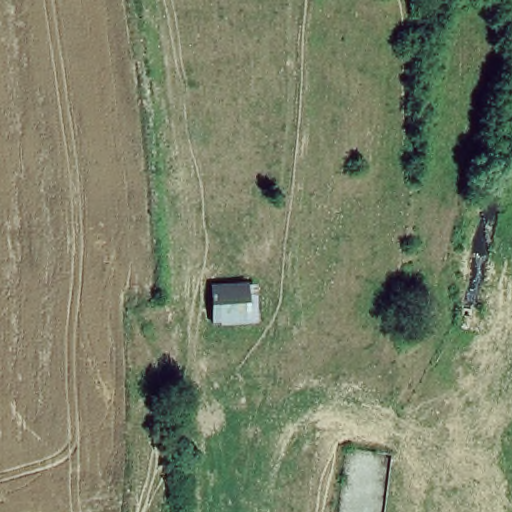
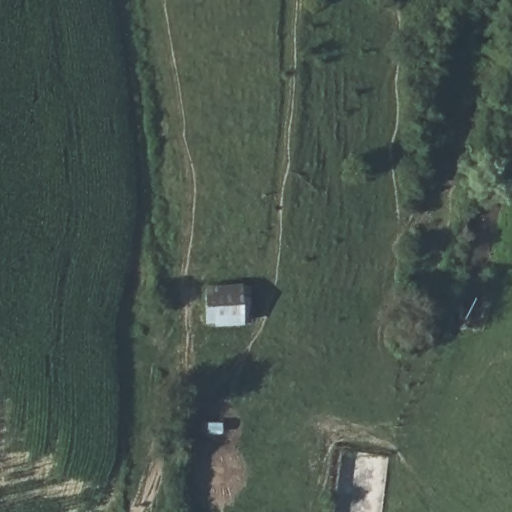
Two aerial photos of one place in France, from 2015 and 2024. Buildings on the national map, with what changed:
unchanged [(205,286),(253,284),(253,324),(204,328),(205,286)]

